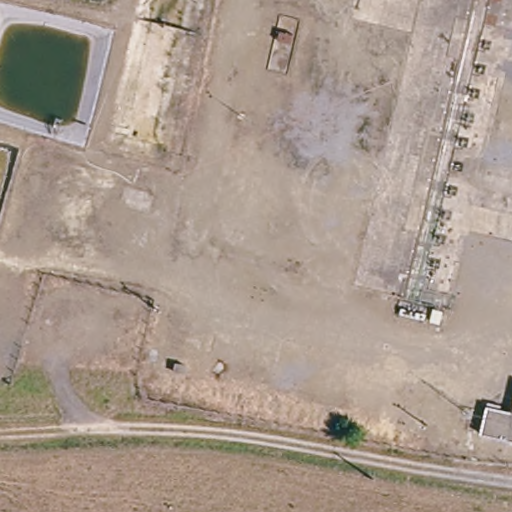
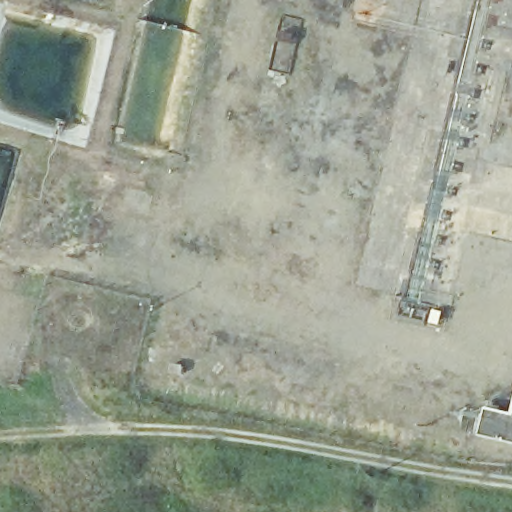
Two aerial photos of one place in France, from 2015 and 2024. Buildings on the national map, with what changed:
unchanged [(478,433),(487,408),(512,414),(512,443),(478,433)]

